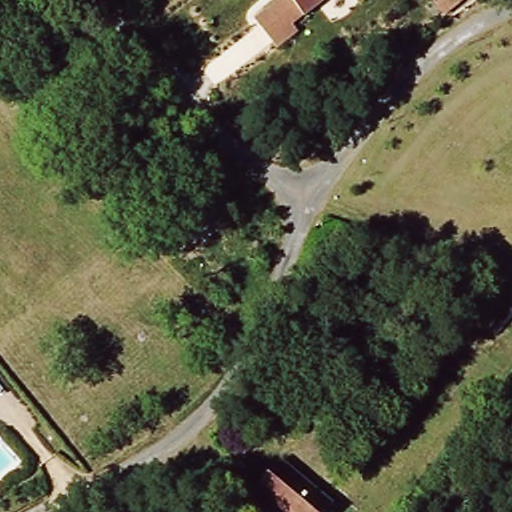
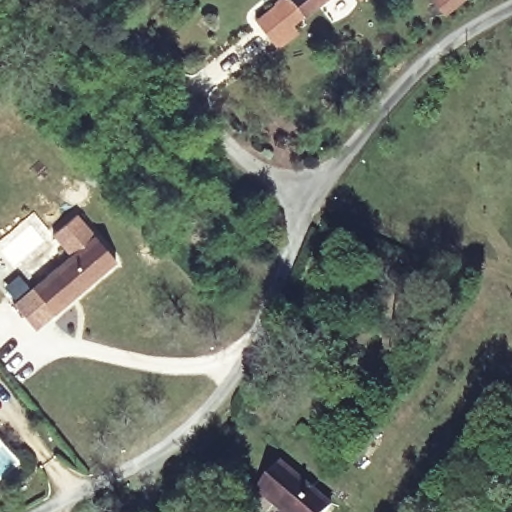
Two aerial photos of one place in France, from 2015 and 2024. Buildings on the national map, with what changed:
unchanged [(302,16),(290,26),(297,34),(277,50),(255,22),(275,6),(282,0),(328,0),(304,19),(302,16)]
unchanged [(362,0),(360,2),(359,0),(362,0)]
new [(12,305),(70,257),(52,237),(77,216),(117,262),(36,329),(12,305)]
unchanged [(323,512),(276,512),(253,493),(275,467),(326,508),(323,512)]

